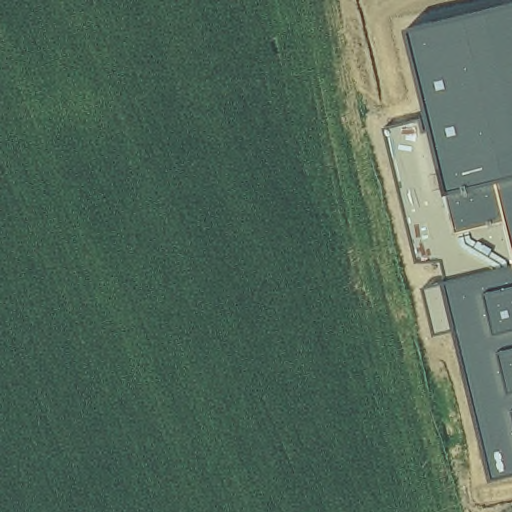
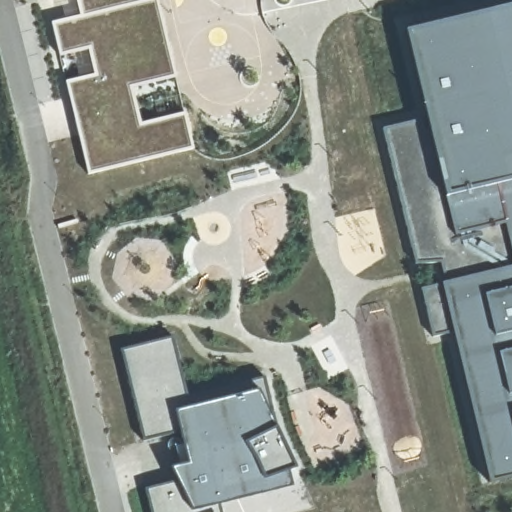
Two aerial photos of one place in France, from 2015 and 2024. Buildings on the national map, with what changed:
new [(145,0),(159,0),(175,75),(131,87),(140,120),(183,110),(191,147),(85,172),(68,82),(95,76),(88,48),(58,55),(53,22),(82,16),(78,0),(134,0),(135,3),(145,0)]
unchanged [(435,336),(422,288),(443,283),(448,281),(442,261),(416,262),(384,130),(430,121),(407,31),(512,4),(512,475),(491,480),(456,331),(435,336)]
new [(186,397),(265,376),(276,430),(295,467),(220,495),(222,512),(150,512),(143,489),(190,476),(180,432),(142,442),(120,348),(170,336),(186,397)]

